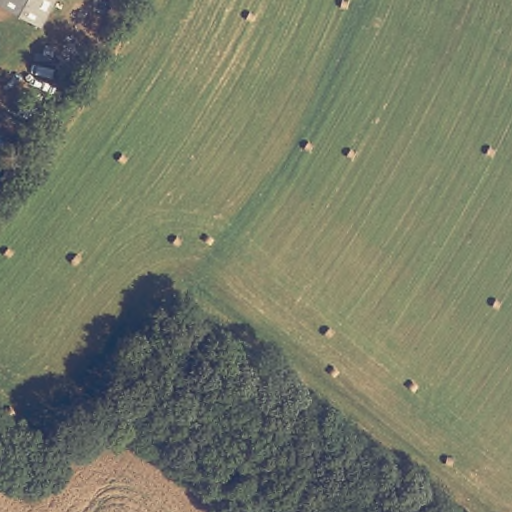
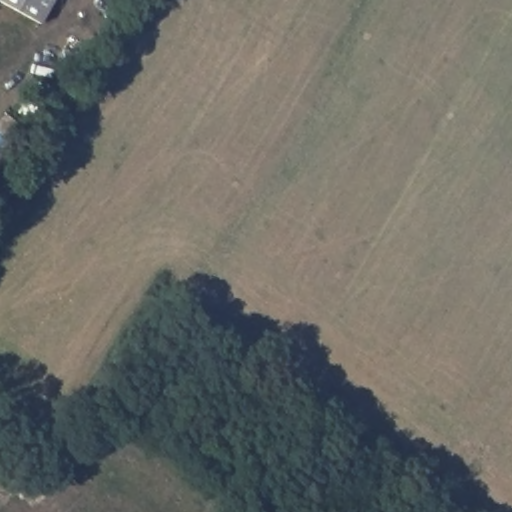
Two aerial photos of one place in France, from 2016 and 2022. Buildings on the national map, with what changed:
unchanged [(5,0),(52,0),(39,21),(5,0)]

